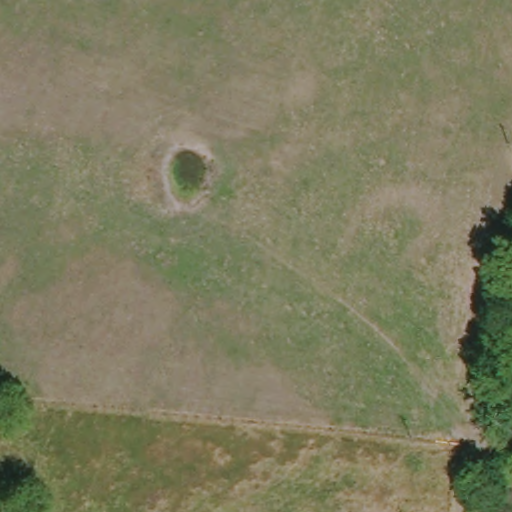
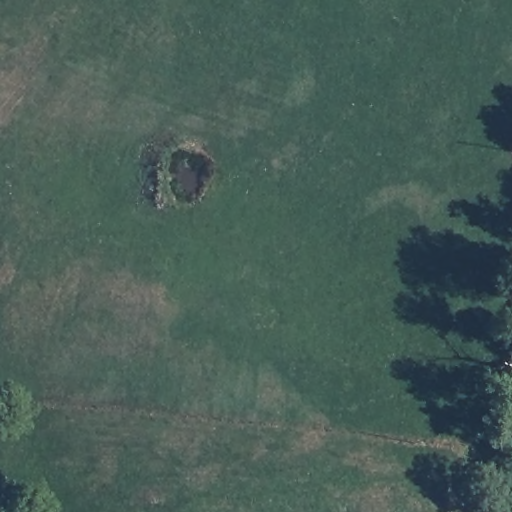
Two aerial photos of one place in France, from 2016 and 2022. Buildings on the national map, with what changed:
[]

